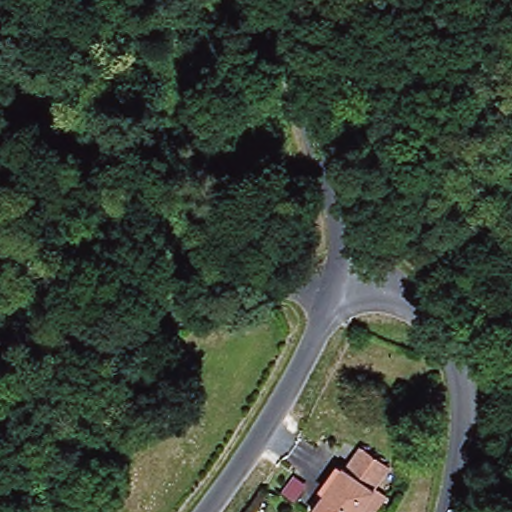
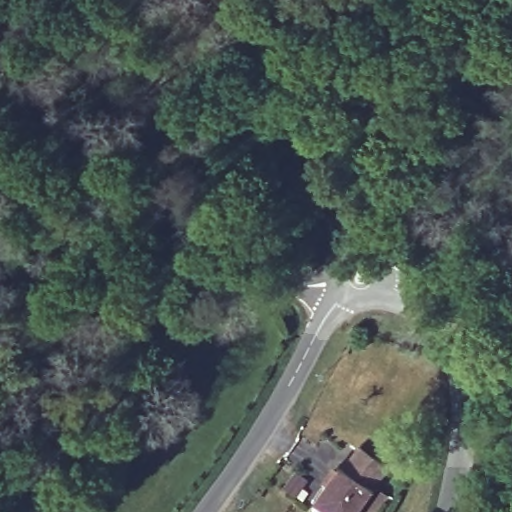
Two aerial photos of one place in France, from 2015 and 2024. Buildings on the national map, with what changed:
unchanged [(356,512),(309,512),(341,467),(343,468),(357,448),(385,467),(370,489),(372,490),(356,512)]

